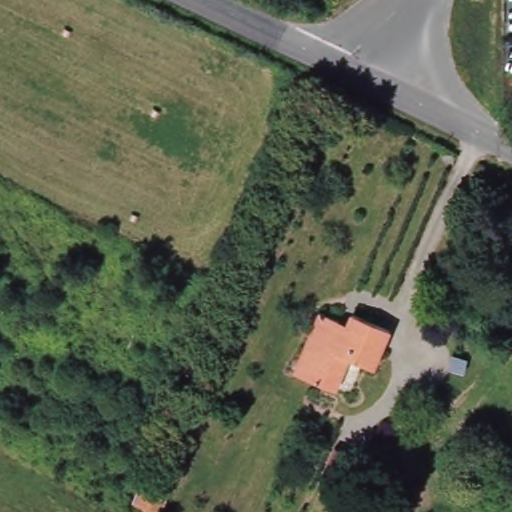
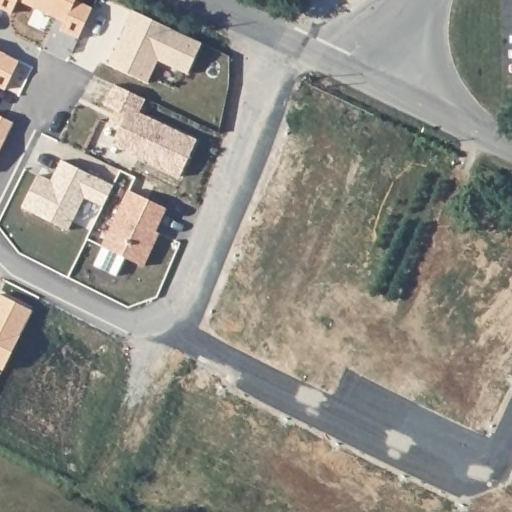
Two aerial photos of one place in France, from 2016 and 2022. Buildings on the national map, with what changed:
new [(202,43),(189,74),(157,62),(149,82),(110,65),(127,29),(125,28),(132,12),(202,43)]
new [(112,145),(120,128),(107,124),(114,108),(106,104),(115,84),(148,99),(141,113),(198,140),(179,177),(112,145)]
new [(15,123),(0,152),(0,115),(15,123)]
new [(52,180),(61,161),(115,186),(105,209),(85,200),(71,233),(22,210),(40,175),(52,180)]
new [(167,207),(157,232),(161,233),(146,265),(102,248),(128,191),(167,207)]
new [(0,367),(0,294),(32,309),(4,369),(0,367)]
demolished [(336,390),(293,372),(319,312),(347,325),(352,314),(390,330),(373,369),(349,359),(336,390)]
unchanged [(156,512),(132,502),(144,474),(172,486),(160,512),(156,512)]

